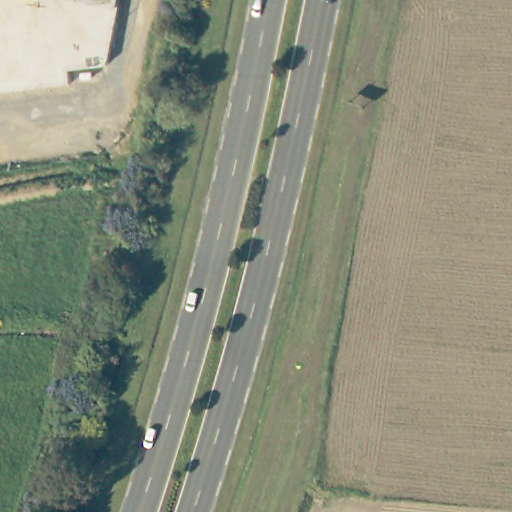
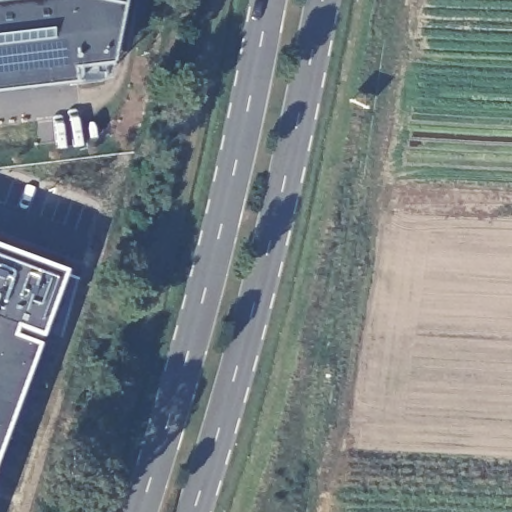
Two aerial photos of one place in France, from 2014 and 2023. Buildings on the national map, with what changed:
new [(120,5),(104,81),(74,83),(0,91),(0,0),(66,0),(120,5)]
unchanged [(120,5),(66,0),(121,0),(120,5)]
new [(8,325),(0,342),(0,249),(61,272),(38,335),(8,325)]

